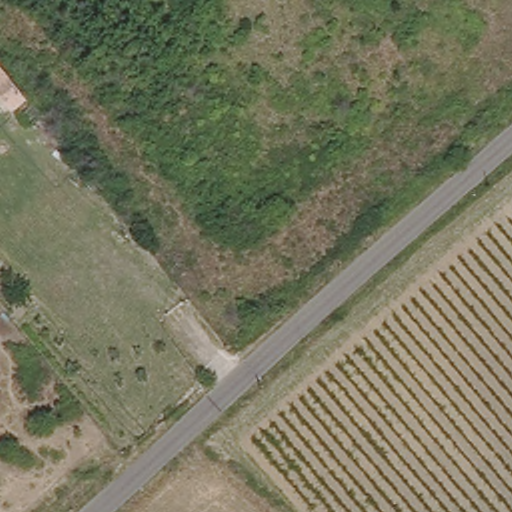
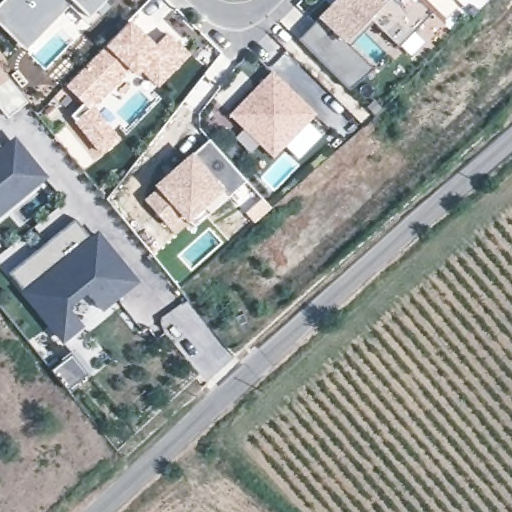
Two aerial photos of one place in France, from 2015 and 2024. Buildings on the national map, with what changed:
new [(3,0),(0,3),(0,0),(3,0)]
new [(3,0),(105,0),(104,1),(110,6),(79,37),(54,12),(25,42),(0,16),(0,3),(3,0)]
new [(422,0),(433,11),(399,46),(374,21),(351,44),(374,68),(350,90),(332,74),(298,39),(333,3),(336,0),(422,0)]
new [(98,158),(69,116),(82,103),(65,86),(103,46),(130,19),(155,43),(167,31),(191,54),(157,89),(139,71),(132,77),(130,75),(94,107),(121,140),(98,158)]
unchanged [(20,79),(25,106),(1,105),(0,98),(0,55),(20,79)]
new [(273,69),(318,111),(276,155),(232,113),(273,69)]
new [(162,186),(159,183),(211,137),(249,180),(233,193),(225,185),(204,203),(200,198),(170,225),(147,199),(162,186)]
new [(6,147),(9,144),(14,151),(21,145),(23,148),(30,155),(44,173),(0,208),(0,140),(6,147)]
new [(95,237),(101,232),(117,252),(122,258),(138,278),(105,306),(95,294),(76,311),(85,322),(66,338),(12,272),(77,218),(95,237)]
new [(74,354),(87,370),(68,386),(55,370),(74,354)]

